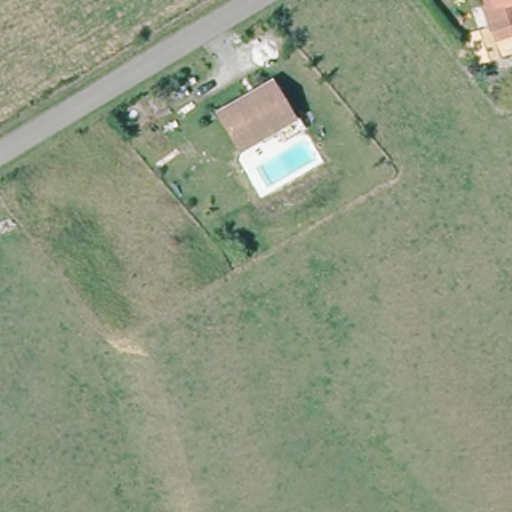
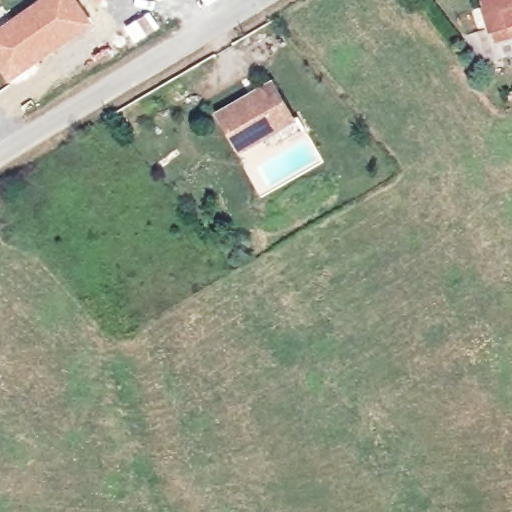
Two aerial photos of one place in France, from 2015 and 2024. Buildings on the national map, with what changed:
new [(39,0),(76,0),(93,25),(9,82),(0,69),(0,27),(39,0)]
unchanged [(496,0),(512,0),(512,18),(487,25),(482,5),(496,2),(496,0)]
unchanged [(285,140),(277,127),(240,148),(219,111),(272,79),(295,117),(302,129),(285,140)]
unchanged [(149,124),(158,141),(145,148),(135,131),(149,124)]

